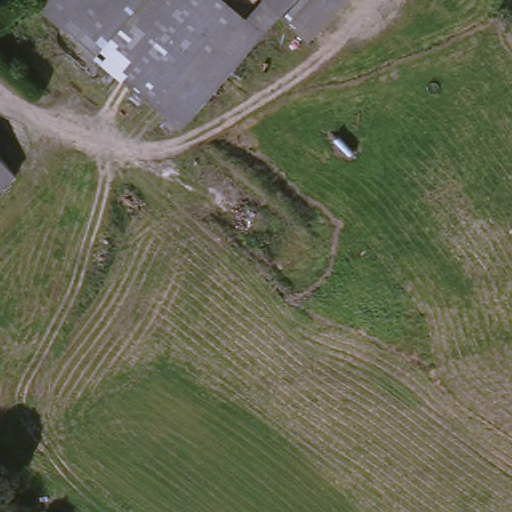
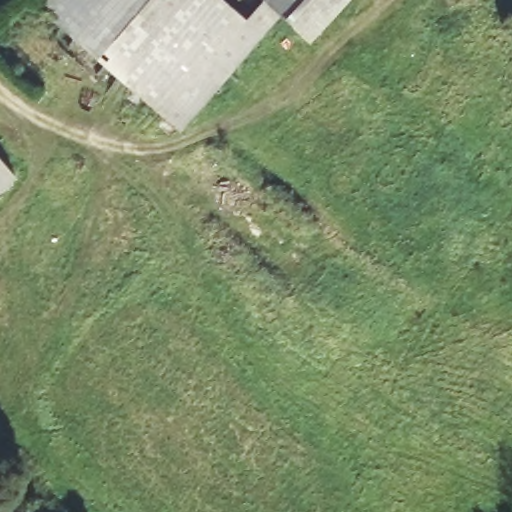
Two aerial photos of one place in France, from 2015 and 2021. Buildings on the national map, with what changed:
unchanged [(51,0),(107,0),(70,46),(38,17),(51,0)]
unchanged [(114,86),(70,46),(107,0),(182,0),(114,85),(114,86)]
unchanged [(258,36),(177,139),(114,85),(182,0),(220,0),(236,14),(258,33),(258,36)]
unchanged [(289,32),(276,16),(258,33),(236,14),(250,0),(328,0),(305,20),(289,32)]
unchanged [(0,191),(0,171),(9,184),(0,191)]

